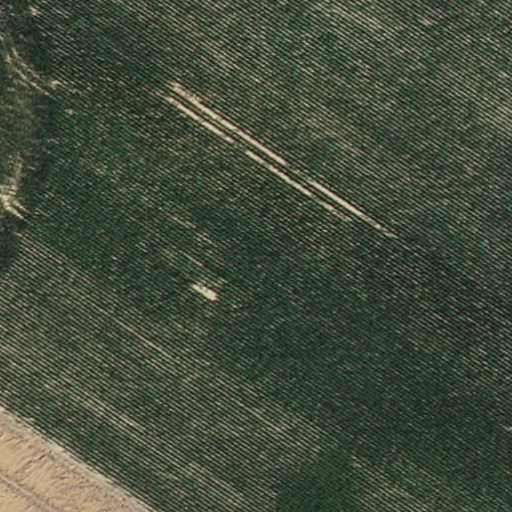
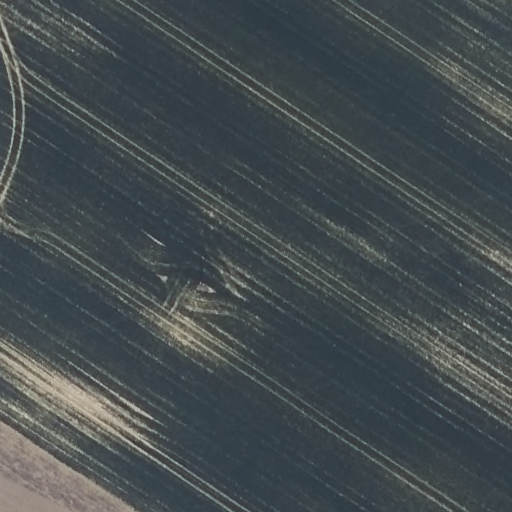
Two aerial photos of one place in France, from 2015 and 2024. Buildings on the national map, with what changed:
[]

